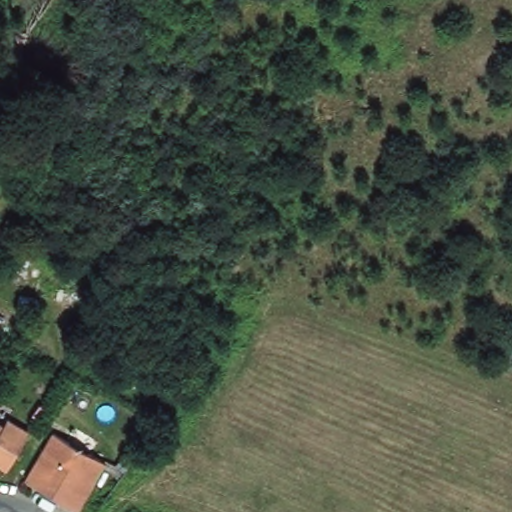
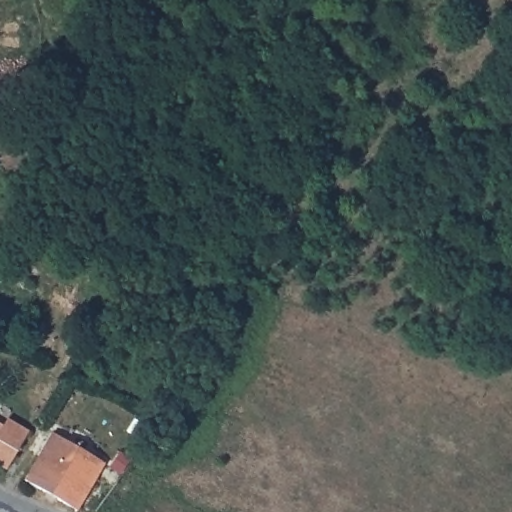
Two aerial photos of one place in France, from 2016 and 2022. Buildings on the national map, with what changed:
unchanged [(2,429),(6,424),(27,437),(5,473),(0,470),(0,428),(2,429)]
unchanged [(77,512),(73,512),(24,484),(51,436),(104,466),(77,512)]

